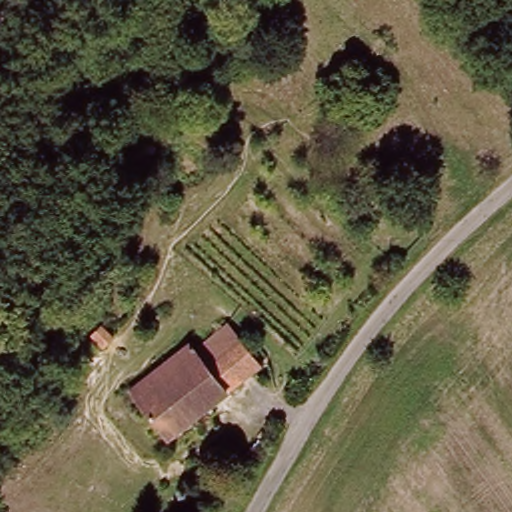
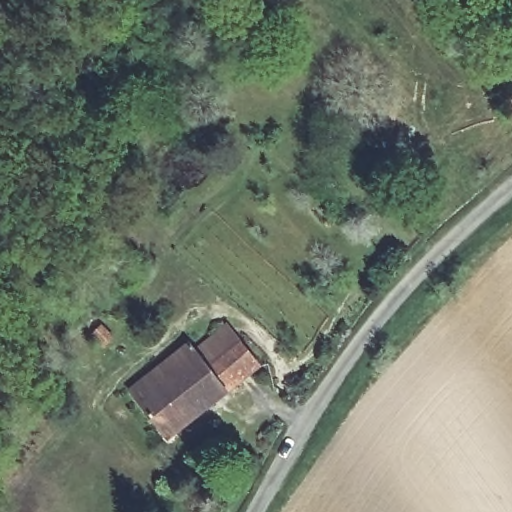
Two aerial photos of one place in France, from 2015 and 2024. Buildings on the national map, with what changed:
unchanged [(267,364),(234,393),(173,436),(135,387),(194,339),(201,346),(235,320),(267,364)]
unchanged [(104,344),(95,334),(104,323),(112,335),(104,344)]

